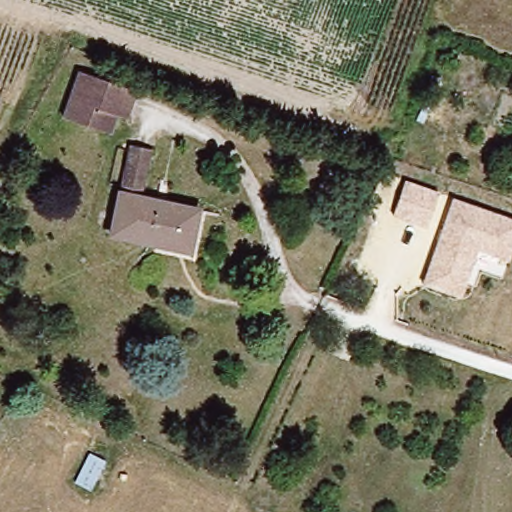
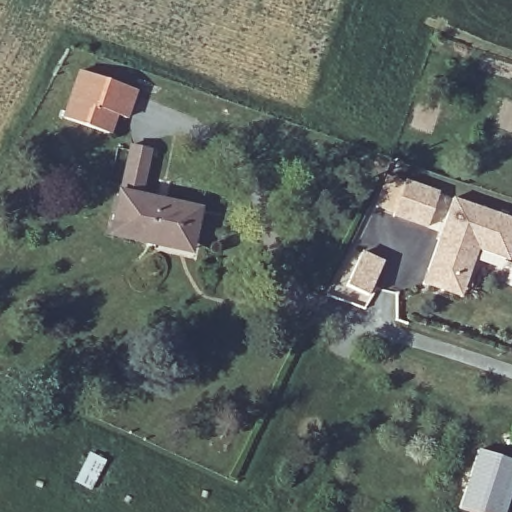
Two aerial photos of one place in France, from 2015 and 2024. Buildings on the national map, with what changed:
unchanged [(133,91),(121,119),(115,117),(107,138),(58,119),(78,70),(133,91)]
unchanged [(182,252),(109,235),(117,194),(125,155),(146,159),(139,199),(191,210),(182,252)]
unchanged [(441,191),(429,227),(392,215),(404,180),(441,191)]
unchanged [(512,251),(509,260),(478,252),(462,297),(423,284),(452,198),(512,218),(512,251)]
new [(360,255),(383,263),(372,297),(349,290),(360,255)]
new [(512,460),(512,493),(506,512),(469,512),(457,508),(476,448),(512,460)]

